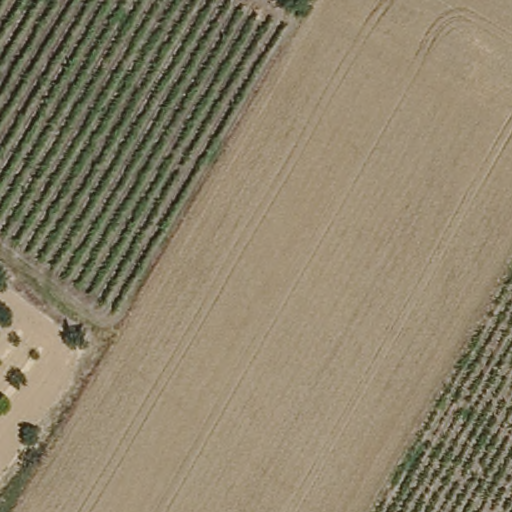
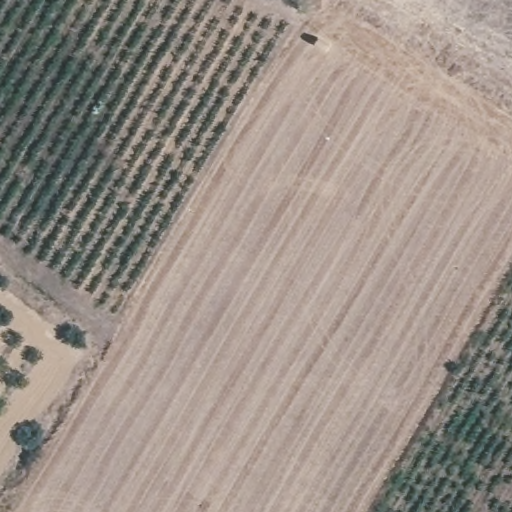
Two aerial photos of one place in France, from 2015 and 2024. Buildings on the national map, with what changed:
[]

